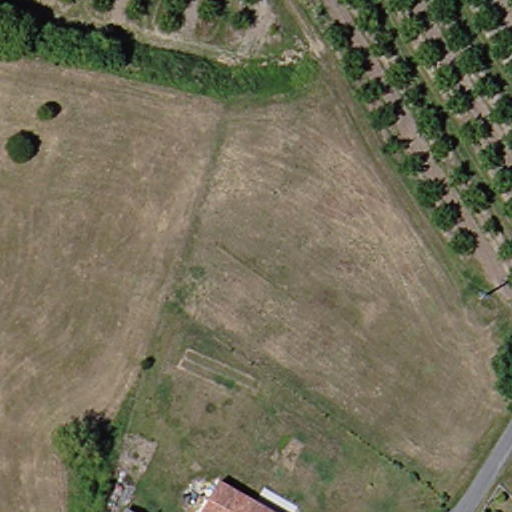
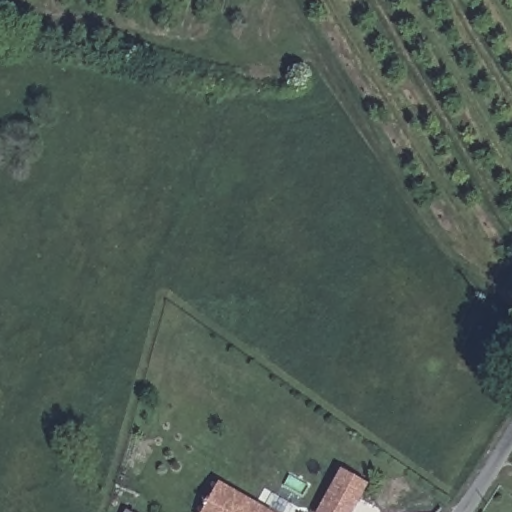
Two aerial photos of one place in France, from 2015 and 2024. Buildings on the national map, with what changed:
new [(316,512),(340,468),(369,485),(354,512),(316,512)]
unchanged [(271,512),(201,512),(218,482),(258,505),(269,511),(271,512)]

